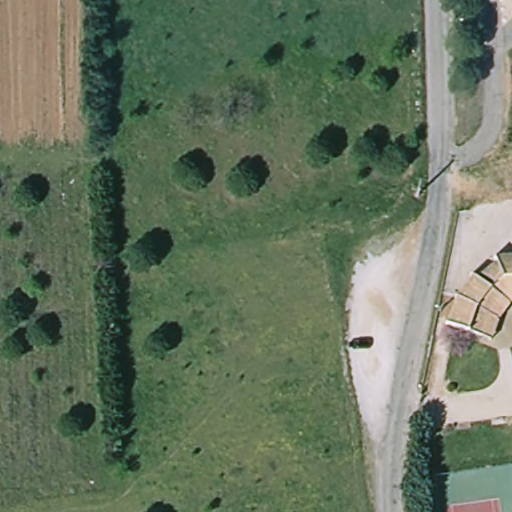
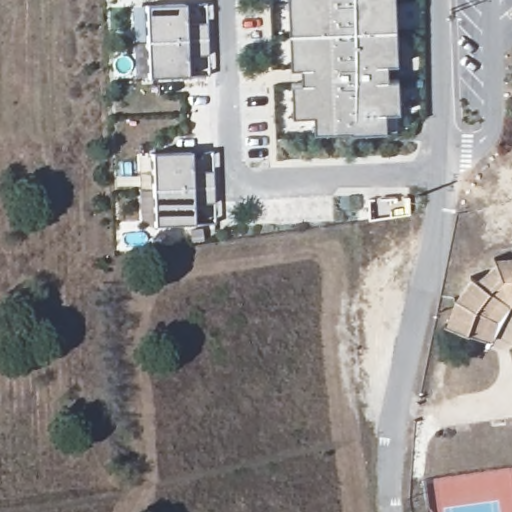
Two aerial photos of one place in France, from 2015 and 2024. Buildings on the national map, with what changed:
new [(299,69),(289,69),(286,0),(296,0),(299,69)]
new [(399,113),(395,113),(395,132),(385,133),(349,134),(349,132),(313,134),(312,116),(301,117),(291,117),(290,84),(300,83),(299,69),(296,0),(384,0),(387,65),(387,80),(397,79),(399,113)]
new [(397,65),(387,65),(384,0),(394,0),(397,65)]
new [(182,4),(183,25),(205,24),(205,40),(143,42),(142,6),(182,4)]
new [(205,40),(206,56),(184,57),(185,77),(145,79),(143,42),(205,40)]
new [(189,153),(190,173),(211,172),(212,202),(192,203),(192,225),(153,226),(149,154),(189,153)]
unchanged [(460,294),(475,280),(478,285),(497,274),(497,269),(512,266),(512,304),(490,315),(482,335),(449,320),(460,294)]

